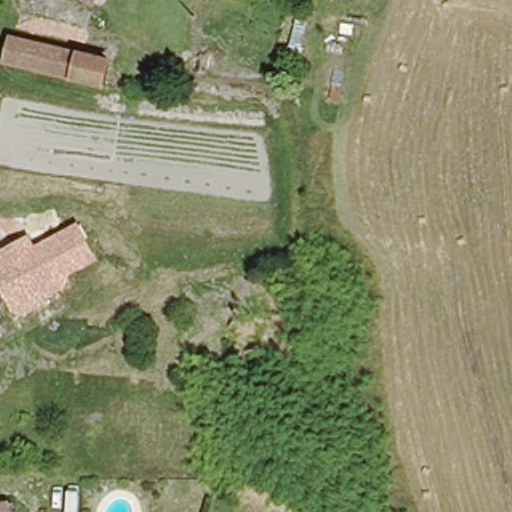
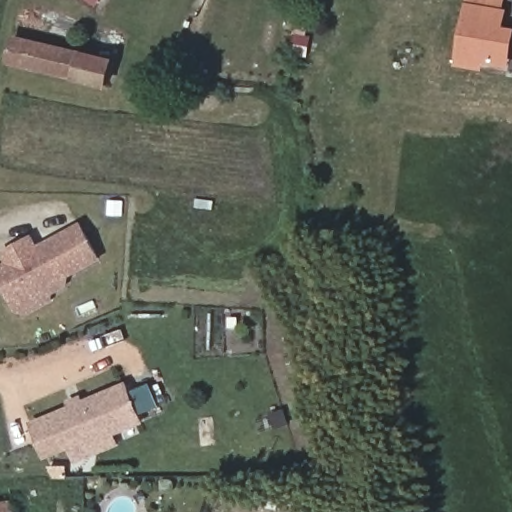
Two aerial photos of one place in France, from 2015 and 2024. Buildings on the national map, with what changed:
unchanged [(101,2),(98,0),(103,0),(101,2)]
new [(467,3),(508,10),(507,27),(512,28),(512,61),(511,67),(485,65),(485,71),(456,67),(467,3)]
unchanged [(302,15),(313,18),(303,51),(292,47),(302,15)]
unchanged [(17,32),(116,60),(114,81),(10,57),(17,32)]
unchanged [(67,289),(53,296),(52,303),(30,316),(19,314),(0,280),(0,267),(6,263),(0,252),(34,235),(40,245),(81,222),(102,261),(75,275),(67,289)]
new [(76,463),(70,450),(46,458),(31,422),(70,405),(68,402),(83,396),(85,399),(128,382),(132,391),(150,384),(160,406),(144,416),(146,422),(116,436),(122,446),(76,463)]
unchanged [(22,512),(0,512),(0,502),(20,500),(22,512)]

